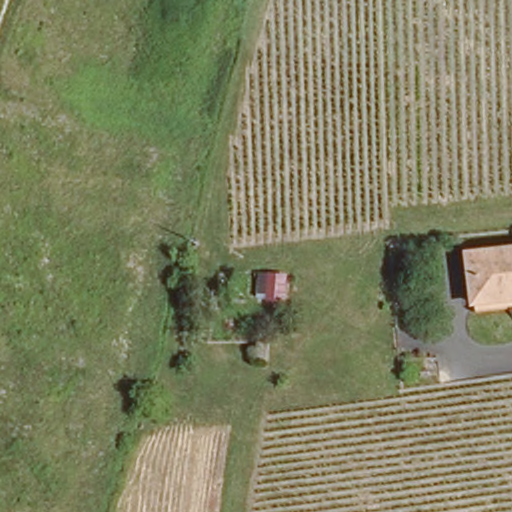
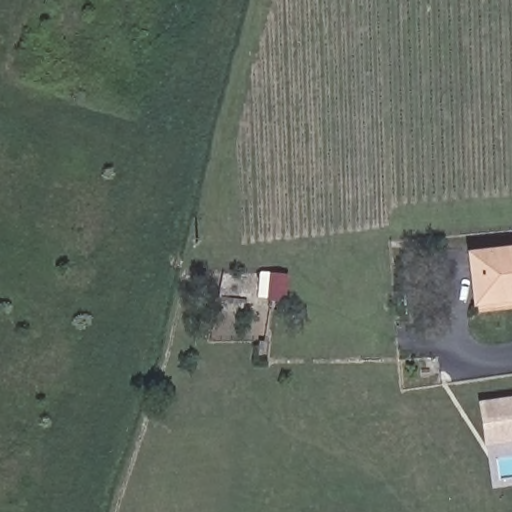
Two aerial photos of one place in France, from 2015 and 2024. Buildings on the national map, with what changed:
unchanged [(512,256),(512,302),(473,307),(468,261),(512,256)]
unchanged [(285,305),(258,303),(257,273),(286,271),(285,305)]
new [(478,403),(512,398),(512,443),(484,448),(478,403)]

